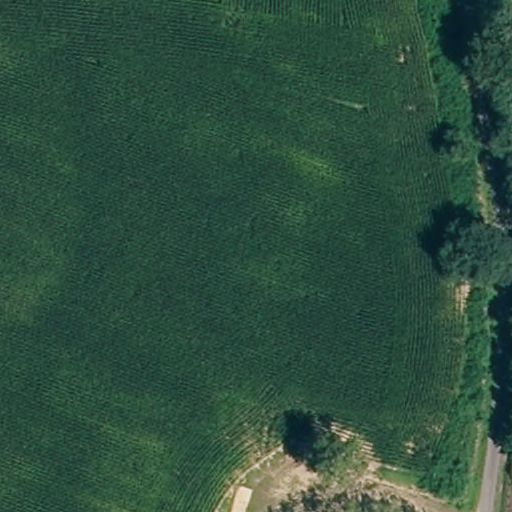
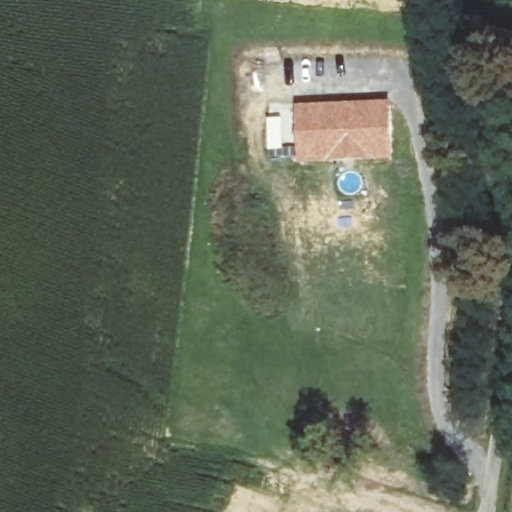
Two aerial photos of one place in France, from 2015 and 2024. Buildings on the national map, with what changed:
new [(390,100),(392,160),(296,166),(292,104),(390,100)]

